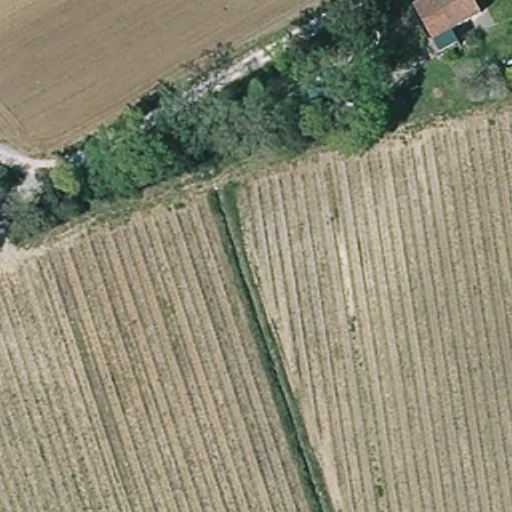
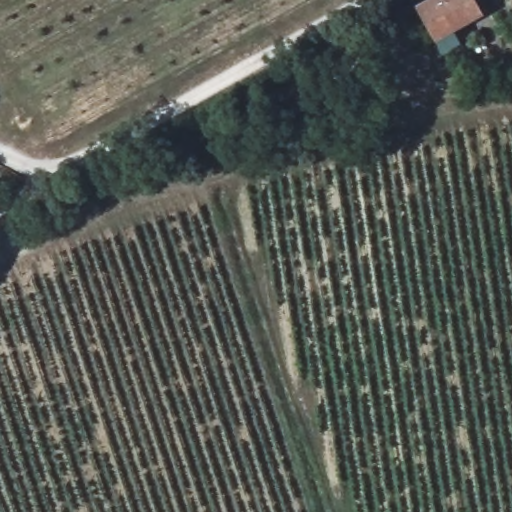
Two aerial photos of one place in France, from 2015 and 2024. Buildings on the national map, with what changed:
unchanged [(479,0),(488,17),(434,45),(412,2),(417,0),(479,0)]

